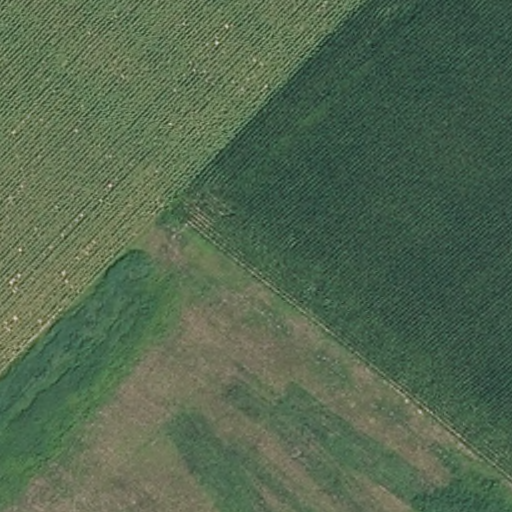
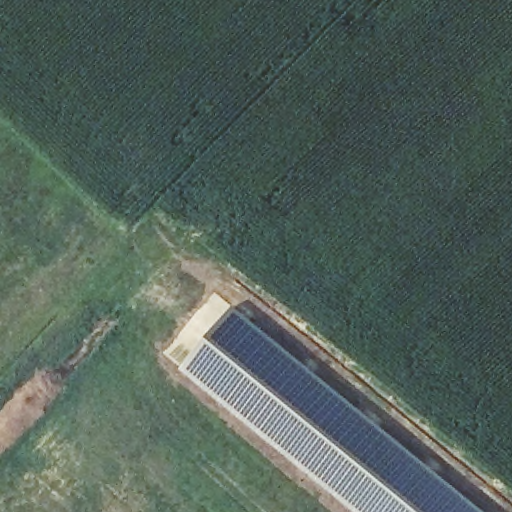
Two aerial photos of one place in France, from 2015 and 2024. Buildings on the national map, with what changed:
new [(483,512),(352,512),(181,371),(234,307),(483,512)]

